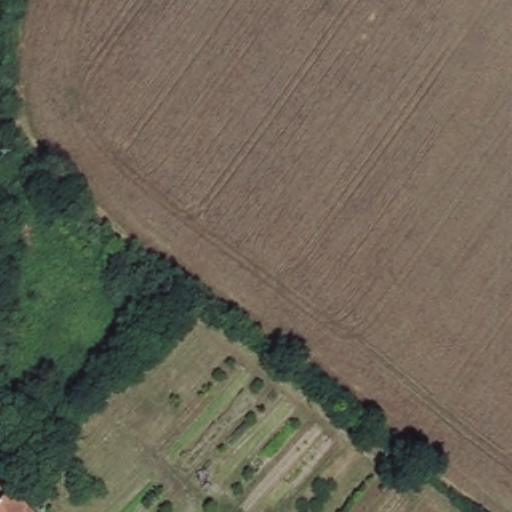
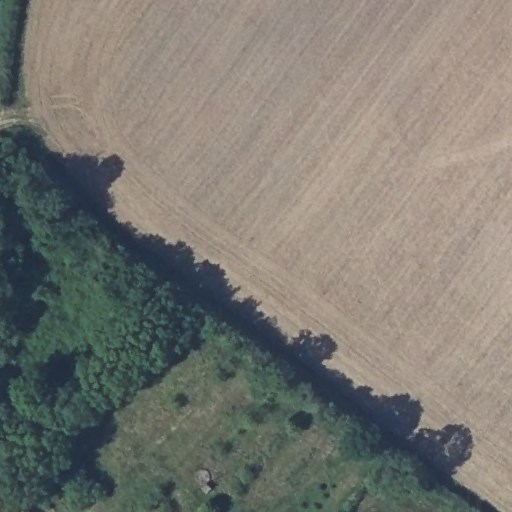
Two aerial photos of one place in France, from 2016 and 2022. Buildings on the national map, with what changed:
unchanged [(32,512),(0,512),(0,493),(7,486),(32,512)]

